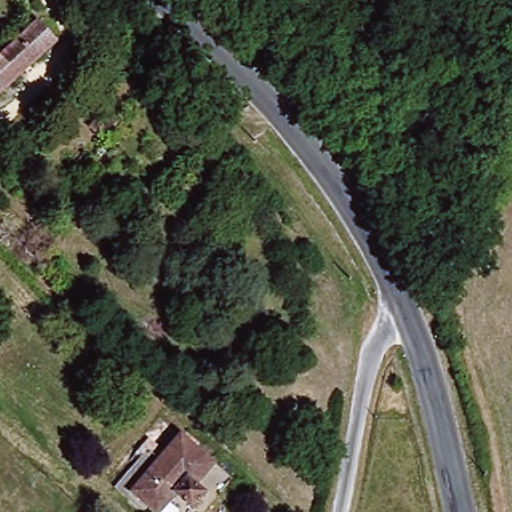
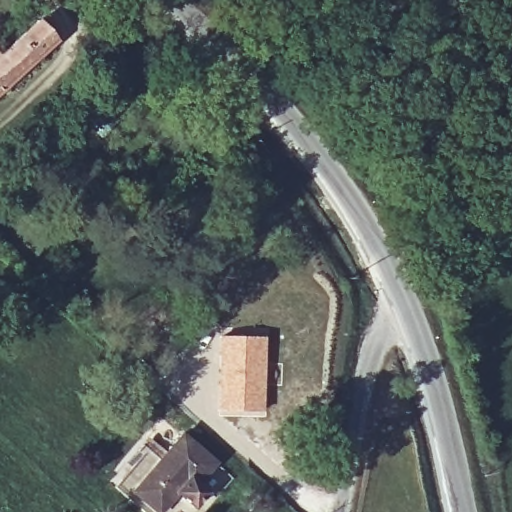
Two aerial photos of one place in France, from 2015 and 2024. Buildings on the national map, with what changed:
unchanged [(58,39),(0,94),(0,53),(38,17),(58,39)]
new [(264,336),(264,412),(215,412),(215,335),(264,336)]
unchanged [(202,477),(169,445),(184,432),(220,467),(208,481),(213,488),(193,511),(180,499),(202,477)]
unchanged [(169,445),(202,477),(180,499),(173,491),(152,512),(132,512),(118,497),(169,445)]

